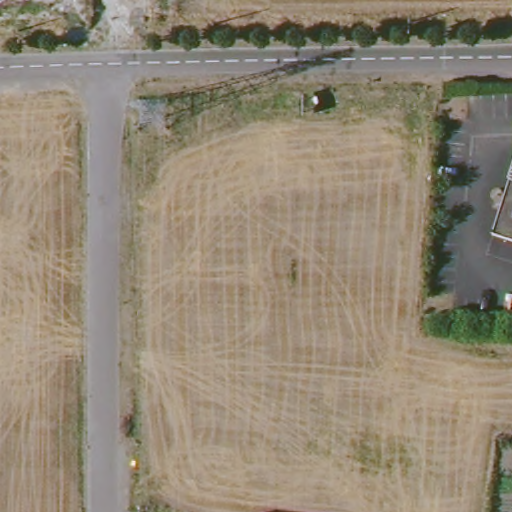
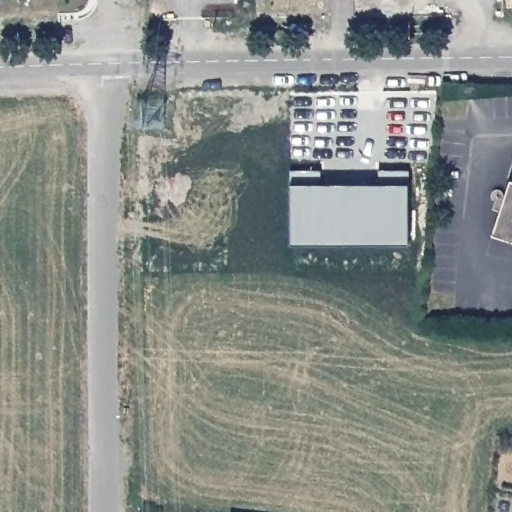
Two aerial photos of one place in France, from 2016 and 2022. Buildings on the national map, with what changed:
new [(102,1),(102,0),(126,0),(102,1)]
new [(292,174),(322,174),(322,187),(380,187),(380,174),(412,174),(411,250),(291,250),(292,174)]
unchanged [(508,180),(512,181),(512,242),(490,235),(508,180)]

